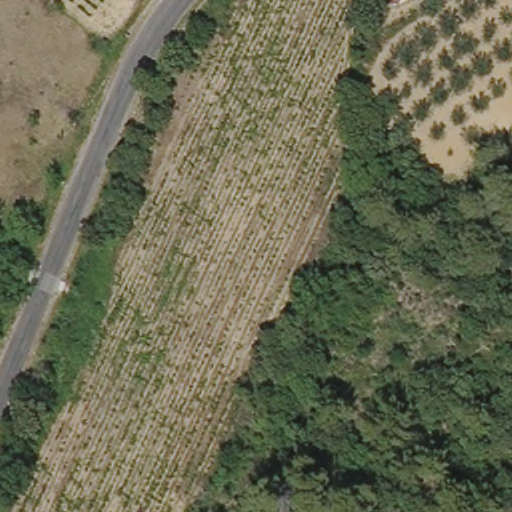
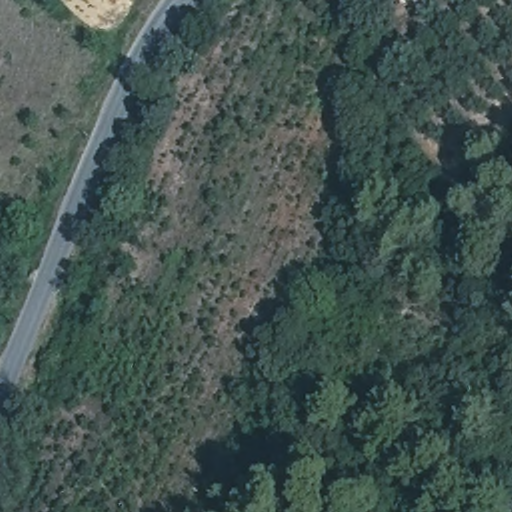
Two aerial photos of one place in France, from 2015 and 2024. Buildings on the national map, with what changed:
[]

